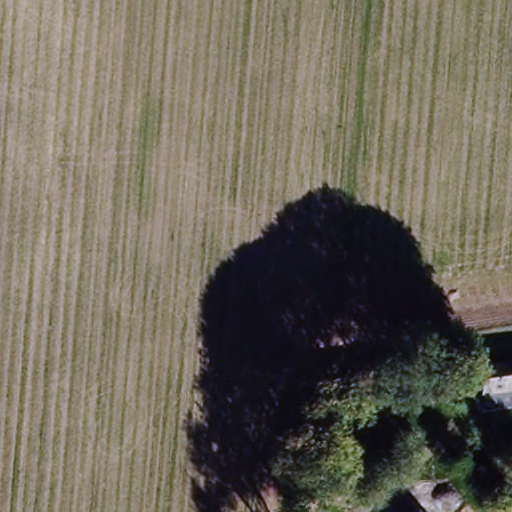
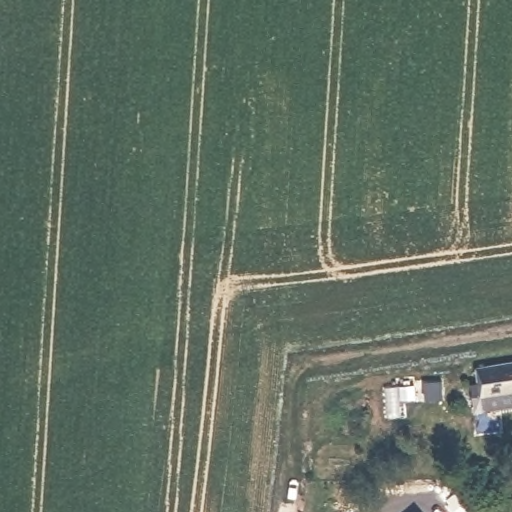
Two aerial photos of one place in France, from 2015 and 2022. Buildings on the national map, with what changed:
unchanged [(512,365),(512,394),(487,398),(483,370),(512,365)]
unchanged [(422,512),(419,512),(421,510),(422,512)]

